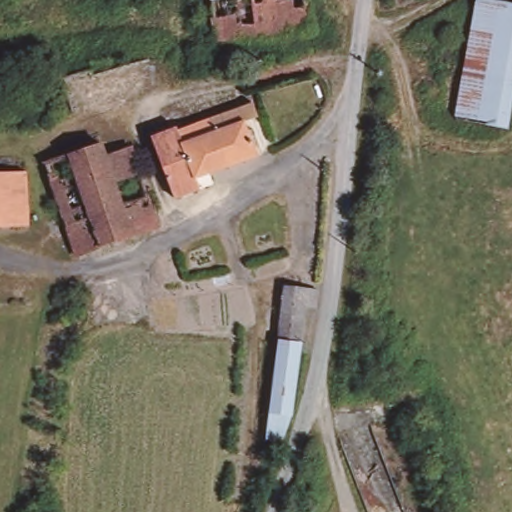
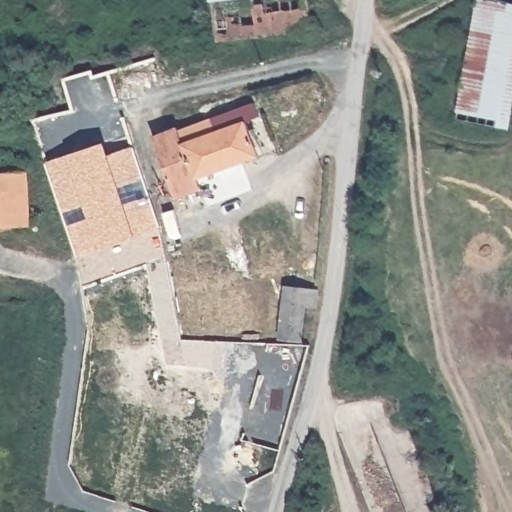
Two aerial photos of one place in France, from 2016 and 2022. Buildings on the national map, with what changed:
unchanged [(305,34),(218,44),(216,0),(301,0),(305,34)]
unchanged [(512,8),(512,80),(501,129),(454,120),(479,0),(512,8)]
unchanged [(79,87),(78,84),(77,78),(77,77),(105,68),(108,75),(102,76),(103,83),(109,105),(85,112),(79,87)]
unchanged [(175,131),(249,104),(255,119),(242,123),(257,157),(198,180),(202,188),(179,197),(159,132),(173,127),(175,131)]
unchanged [(48,163),(101,142),(104,155),(129,146),(150,225),(77,250),(48,163)]
unchanged [(22,225),(0,227),(0,174),(21,173),(22,225)]
unchanged [(283,288),(317,292),(314,307),(303,306),(299,343),(297,351),(275,350),(277,344),(283,288)]
unchanged [(290,416),(267,413),(275,350),(297,351),(290,416)]

